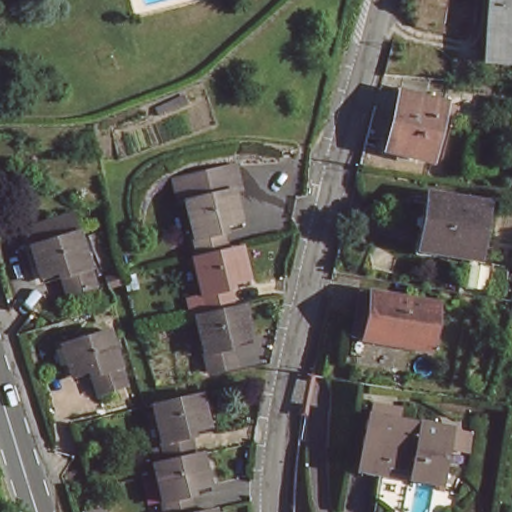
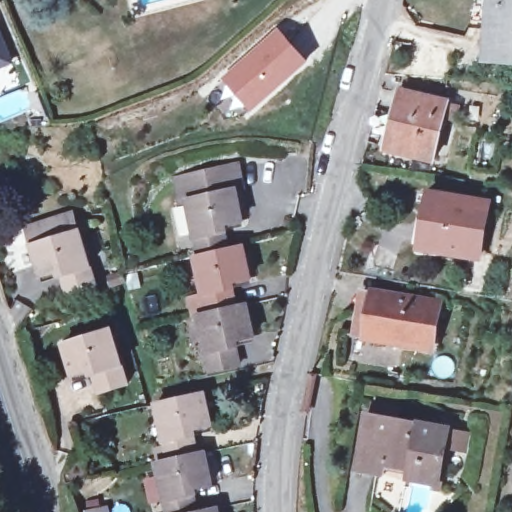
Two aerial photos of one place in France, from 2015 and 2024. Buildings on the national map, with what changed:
unchanged [(480,0),(512,0),(512,68),(477,67),(480,0)]
new [(252,111),(244,117),(223,118),(205,97),(223,81),(220,77),(277,28),(309,63),(252,111)]
new [(12,64),(0,69),(0,32),(12,64)]
unchanged [(442,104),(427,162),(387,151),(403,93),(442,104)]
unchanged [(198,261),(178,184),(228,172),(242,226),(222,230),(223,235),(220,236),(225,254),(198,261)]
unchanged [(482,205),(475,254),(421,244),(430,196),(482,205)]
unchanged [(95,288),(66,298),(58,275),(41,281),(25,234),(71,220),(95,288)]
unchanged [(25,231),(6,237),(3,227),(21,222),(25,231)]
unchanged [(225,254),(240,251),(247,283),(230,287),(232,294),(228,295),(232,312),(205,318),(191,262),(198,261),(225,254)]
unchanged [(441,305),(433,348),(360,337),(366,295),(441,305)]
unchanged [(241,310),(250,342),(232,347),(233,353),(230,354),(234,371),(208,377),(195,321),(205,318),(232,312),(241,310)]
unchanged [(127,386),(99,396),(91,375),(73,380),(63,347),(109,332),(127,386)]
unchanged [(150,407),(197,396),(205,427),(188,432),(190,441),(186,442),(190,457),(163,463),(150,407)]
unchanged [(365,407),(395,412),(392,426),(450,436),(461,438),(458,455),(447,452),(437,451),(432,483),(380,475),(379,479),(353,475),(362,421),(363,421),(365,407)]
unchanged [(190,457),(197,455),(205,487),(187,491),(189,497),(185,498),(189,512),(162,512),(151,466),(163,463),(190,457)]

